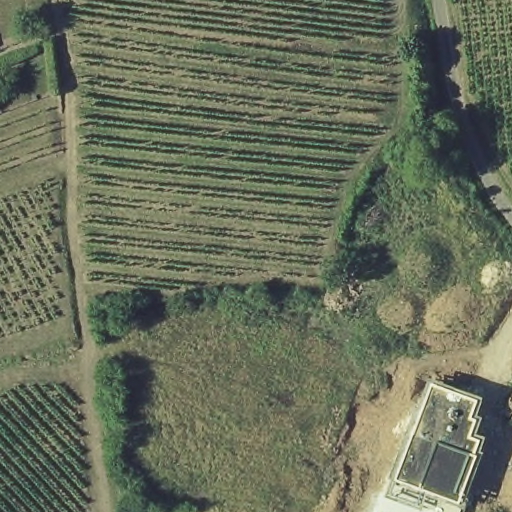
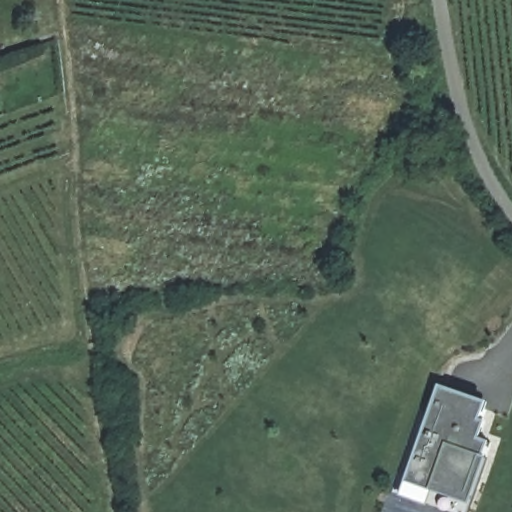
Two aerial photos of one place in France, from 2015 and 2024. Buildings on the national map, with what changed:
unchanged [(488,418),(493,419),(488,437),(497,439),(492,455),(495,456),(476,507),(438,495),(433,512),(430,512),(398,499),(438,381),(495,400),(488,418)]

